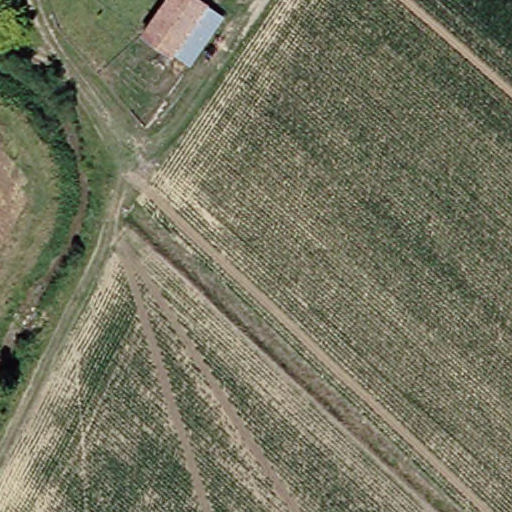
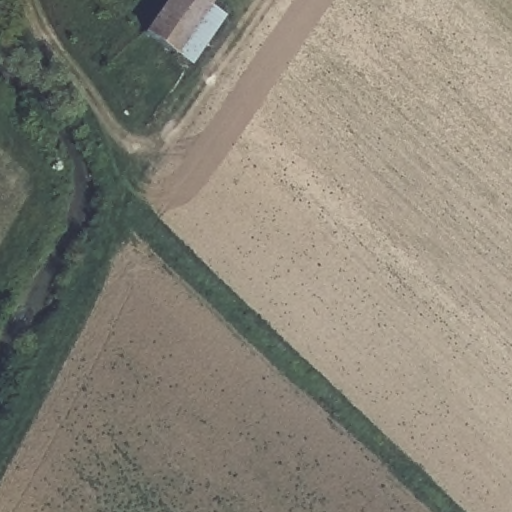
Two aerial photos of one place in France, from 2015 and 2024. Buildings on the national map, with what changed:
unchanged [(150,33),(175,0),(206,0),(214,6),(177,55),(150,33)]

